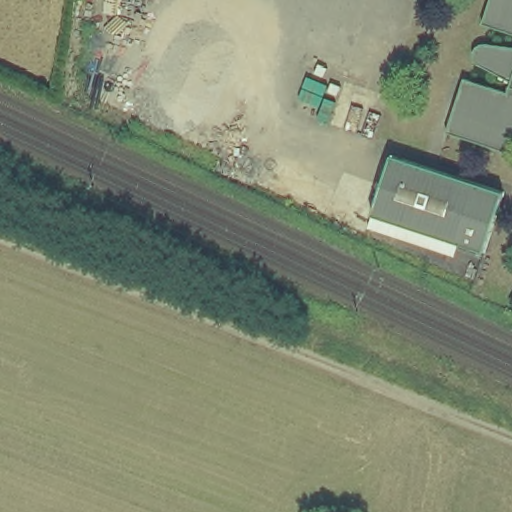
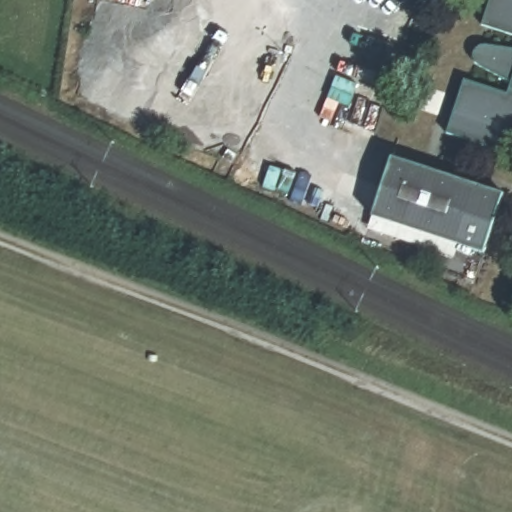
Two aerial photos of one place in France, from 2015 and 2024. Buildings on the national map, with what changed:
unchanged [(489,0),(512,0),(512,40),(479,28),(489,0)]
unchanged [(500,158),(441,137),(462,83),(504,99),(507,87),(471,66),(470,57),(475,50),(512,53),(512,135),(508,136),(500,158)]
unchanged [(368,219),(387,158),(501,194),(480,256),(455,246),(368,219)]
unchanged [(450,260),(364,230),(368,219),(455,246),(450,260)]

